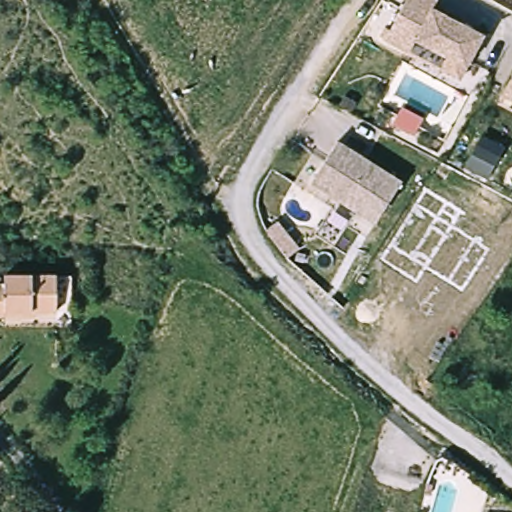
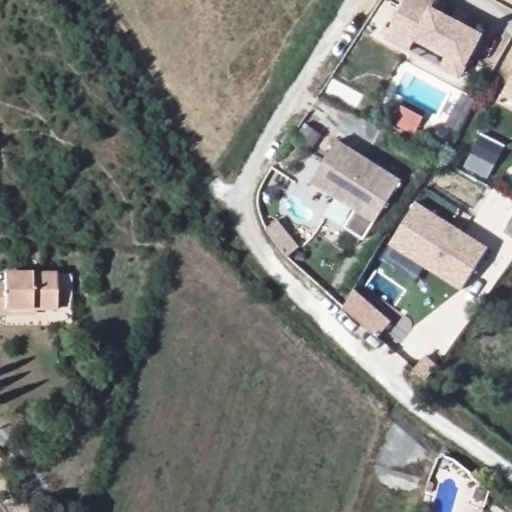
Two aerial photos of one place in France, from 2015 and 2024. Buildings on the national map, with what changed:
unchanged [(416,40),(410,52),(386,39),(407,0),(438,0),(434,8),(485,36),(473,58),(455,48),(450,58),(448,57),(416,40)]
unchanged [(461,79),(442,69),(448,57),(455,48),(473,58),(461,79)]
unchanged [(512,76),(512,95),(504,91),(512,76)]
unchanged [(408,124),(430,136),(425,145),(403,133),(408,124)]
unchanged [(399,182),(373,223),(309,182),(336,141),(399,182)]
new [(461,291),(391,246),(418,202),(489,247),(461,291)]
unchanged [(4,322),(0,323),(0,273),(50,270),(61,270),(63,319),(53,319),(53,308),(4,312),(4,322)]

